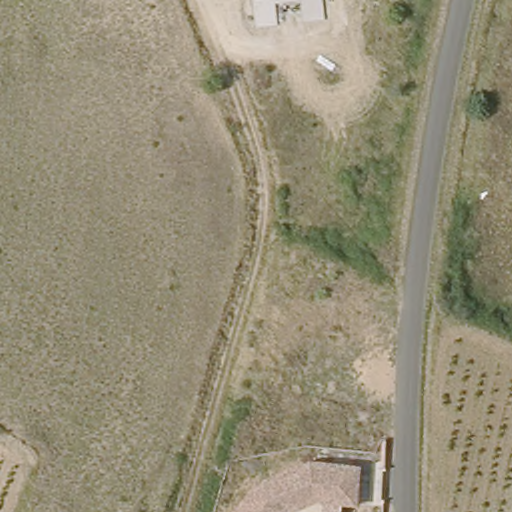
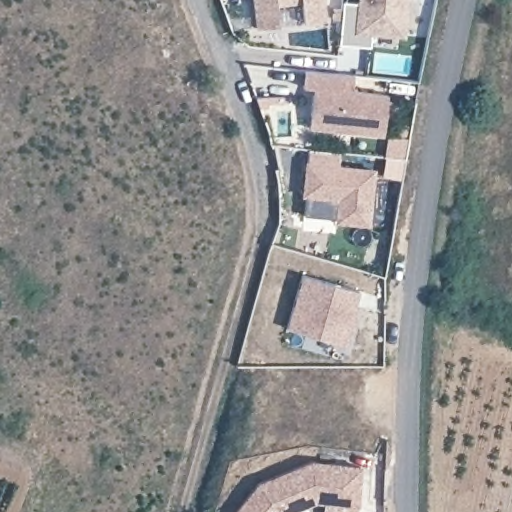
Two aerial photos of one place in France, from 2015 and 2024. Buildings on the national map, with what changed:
unchanged [(308,33),(305,12),(280,15),(283,36),(261,39),(256,0),(327,0),(330,30),(308,33)]
new [(361,12),(363,0),(409,0),(405,44),(374,41),(373,56),(341,53),(345,10),(361,12)]
new [(307,81),(357,86),(355,102),(390,106),(386,146),(311,139),(316,99),(305,98),(307,81)]
new [(307,158),(338,161),(336,176),(371,180),(365,234),(334,230),(337,208),(301,203),(307,158)]
new [(298,272),(355,288),(350,304),(349,304),(347,313),(352,314),(344,341),(283,324),(298,272)]
unchanged [(358,504),(318,503),(289,512),(235,512),(258,480),(308,461),(359,464),(358,504)]

